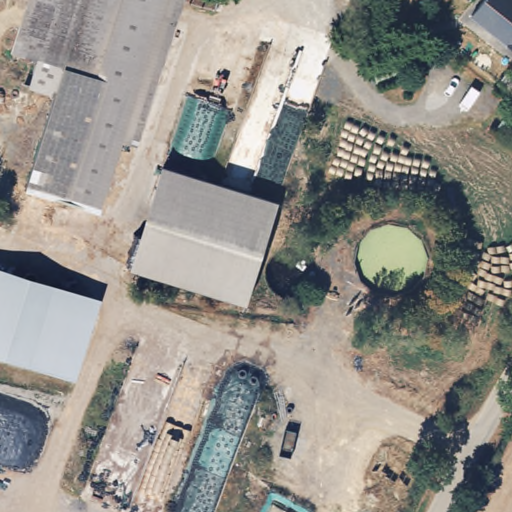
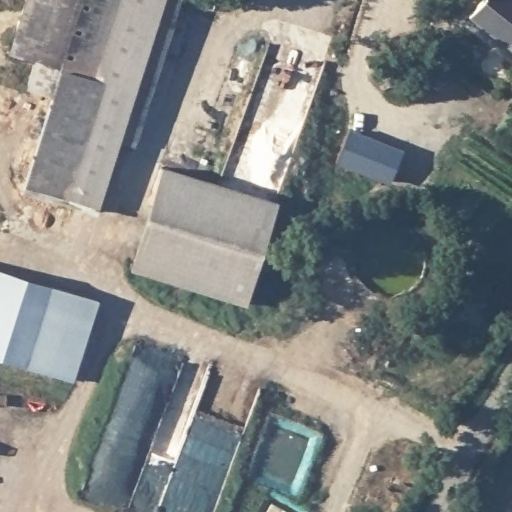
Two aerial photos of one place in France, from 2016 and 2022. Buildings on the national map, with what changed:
unchanged [(65,76),(29,64),(32,50),(48,0),(168,0),(103,209),(32,187),(65,76)]
unchanged [(477,0),(512,0),(512,51),(502,43),(466,15),(472,6),(477,0)]
new [(349,128),(403,150),(390,185),(336,162),(349,128)]
unchanged [(277,203),(249,306),(128,270),(159,167),(277,203)]
unchanged [(95,299),(70,376),(0,353),(0,269),(95,299)]

